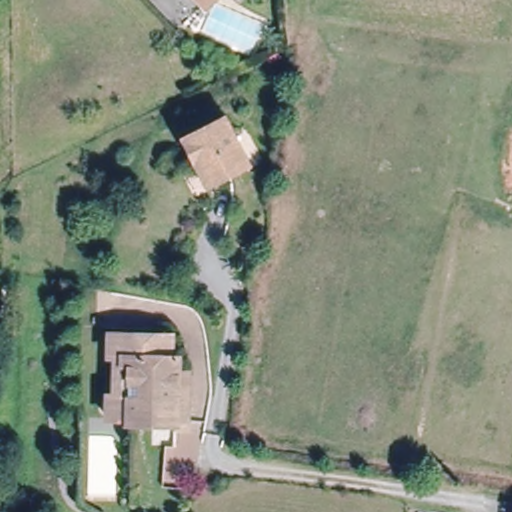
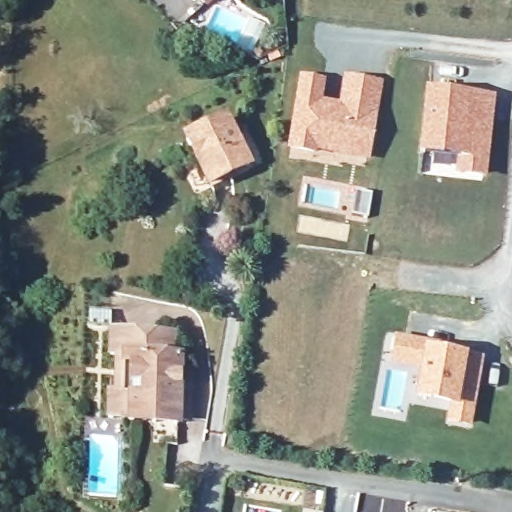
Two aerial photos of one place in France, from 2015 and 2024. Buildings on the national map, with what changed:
unchanged [(209,4),(205,0),(212,0),(209,4)]
new [(298,75),(326,80),(323,99),(337,101),(342,74),(383,80),(370,160),(286,149),(298,75)]
new [(423,88),(496,94),(487,177),(428,175),(430,158),(418,154),(423,88)]
unchanged [(225,176),(205,185),(184,139),(221,120),(242,162),(244,166),(225,176)]
unchanged [(167,352),(173,352),(174,369),(184,369),(184,381),(185,415),(172,415),(173,420),(127,421),(126,416),(106,416),(105,393),(112,393),(111,355),(105,355),(105,331),(166,330),(167,352)]
new [(390,365),(395,336),(425,340),(435,342),(434,346),(485,355),(472,427),(445,423),(448,405),(415,398),(420,369),(390,365)]
new [(323,510),(323,512),(303,512),(303,507),(323,510)]

